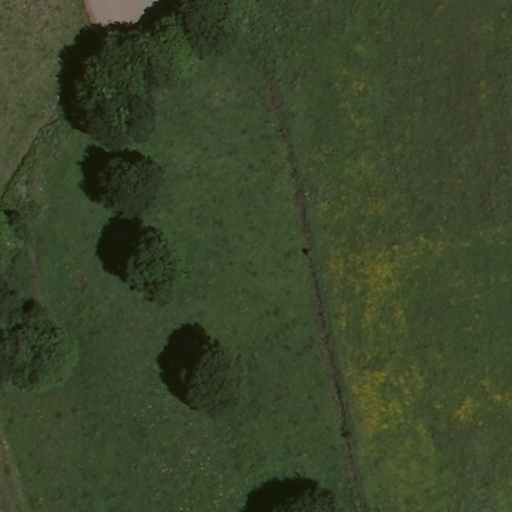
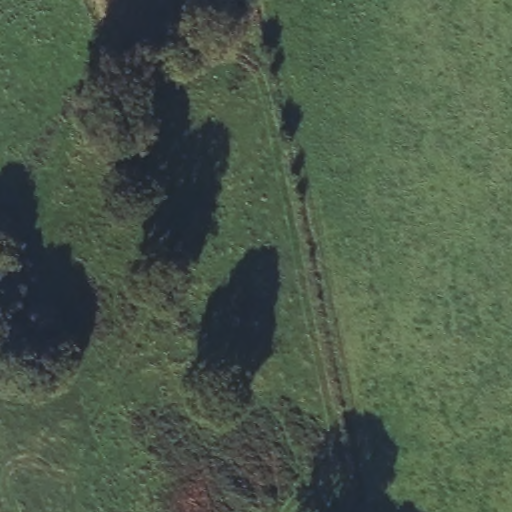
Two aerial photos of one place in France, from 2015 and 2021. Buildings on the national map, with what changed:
unchanged [(95,93),(81,109),(73,101),(86,87),(95,93)]

